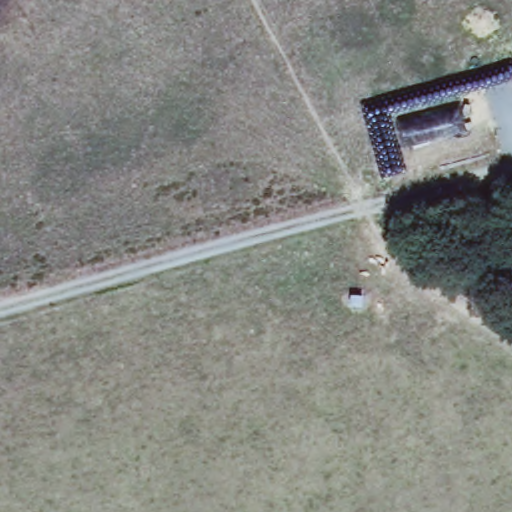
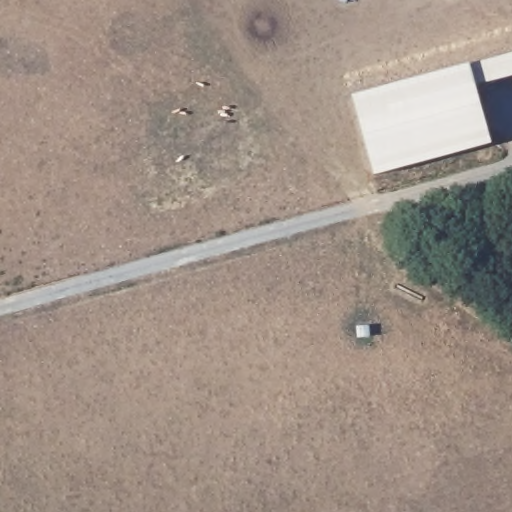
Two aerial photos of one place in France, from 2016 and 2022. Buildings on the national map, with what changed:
new [(476,87),(492,145),(375,179),(352,97),(469,66),(512,54),(512,78),(476,87)]

